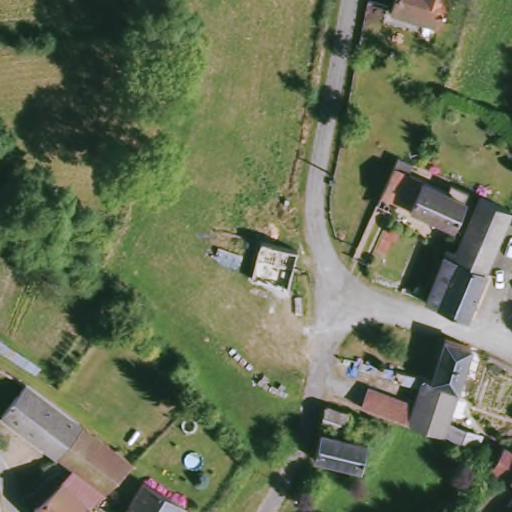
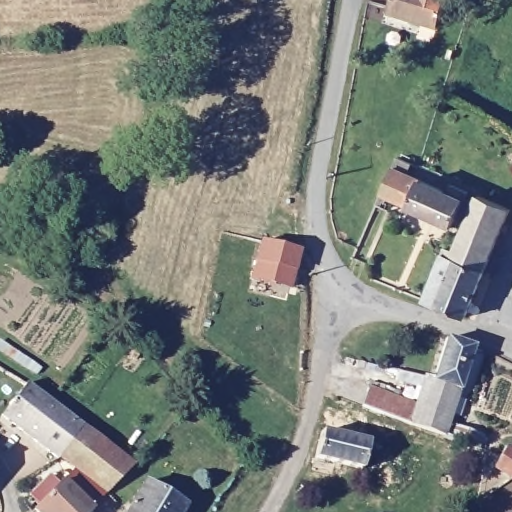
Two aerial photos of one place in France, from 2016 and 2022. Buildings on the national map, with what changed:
unchanged [(403,12),(406,0),(451,0),(445,24),(403,12)]
unchanged [(419,165),(427,169),(422,176),(459,194),(462,185),(477,191),(475,200),(483,204),(472,229),(464,226),(461,228),(421,211),(420,206),(412,204),(407,214),(392,206),(399,197),(419,165)]
unchanged [(469,311),(428,297),(451,249),(464,252),(487,196),(512,207),(512,215),(469,311)]
new [(300,249),(290,290),(251,279),(260,241),(300,249)]
unchanged [(452,435),(363,406),(369,386),(419,402),(429,377),(435,378),(449,340),(480,349),(452,435)]
unchanged [(0,404),(20,375),(80,420),(57,447),(55,451),(0,409),(0,404)]
unchanged [(334,405),(357,411),(358,415),(382,423),(375,441),(327,424),(334,405)]
unchanged [(55,482),(67,470),(87,481),(91,474),(57,447),(80,420),(130,457),(83,506),(77,500),(68,512),(37,512),(32,507),(37,502),(29,495),(47,475),(55,482)]
unchanged [(460,425),(482,431),(477,443),(457,436),(460,425)]
unchanged [(320,460),(327,435),(372,447),(367,470),(320,460)]
unchanged [(507,469),(512,460),(512,472),(507,469)]
unchanged [(191,512),(137,512),(152,489),(191,512)]
unchanged [(83,506),(88,512),(68,512),(77,500),(83,506)]

